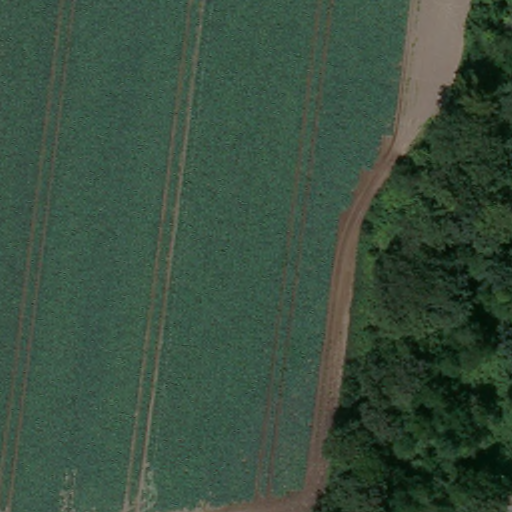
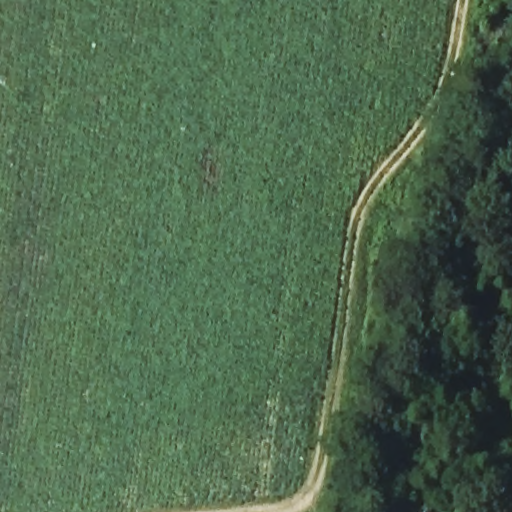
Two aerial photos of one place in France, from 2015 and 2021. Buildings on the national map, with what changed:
[]

